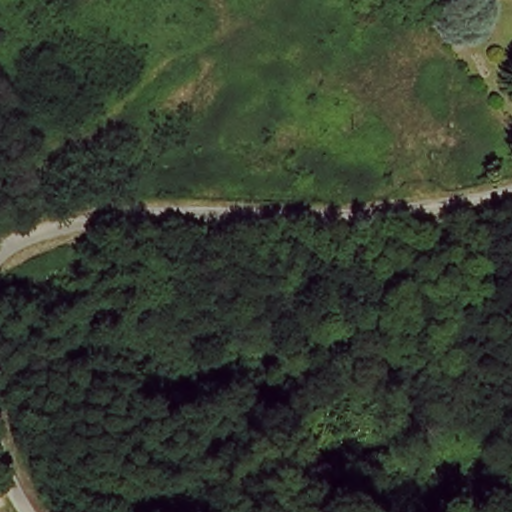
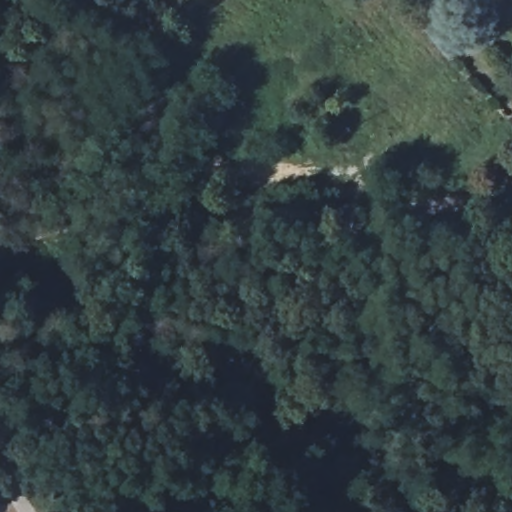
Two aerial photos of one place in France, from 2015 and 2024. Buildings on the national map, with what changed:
[]

